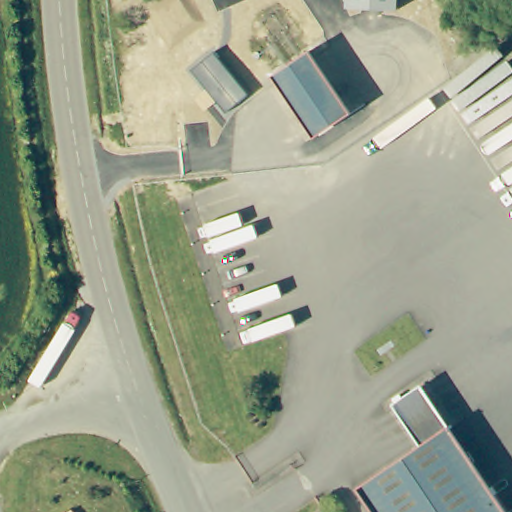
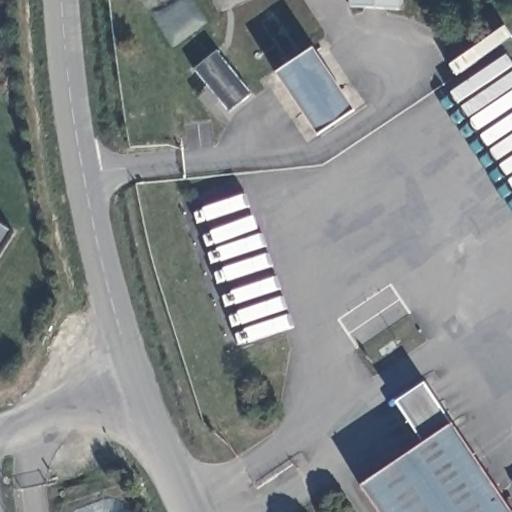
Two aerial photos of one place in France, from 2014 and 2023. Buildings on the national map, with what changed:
unchanged [(399,10),(349,7),(349,0),(399,0),(399,10)]
unchanged [(215,52),(250,94),(228,112),(192,70),(215,52)]
unchanged [(312,127),(282,82),(320,57),(349,101),(312,127)]
new [(12,232),(0,251),(0,225),(12,232)]
unchanged [(395,398),(426,380),(453,420),(424,439),(395,398)]
unchanged [(497,483),(453,512),(378,512),(358,483),(424,439),(453,420),(497,483)]
unchanged [(512,512),(453,512),(497,483),(512,505),(512,512)]

